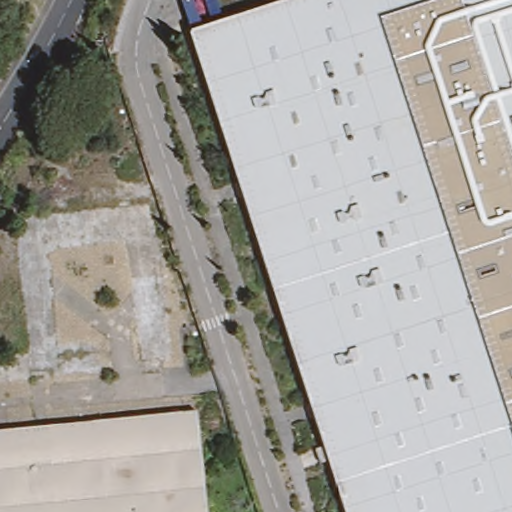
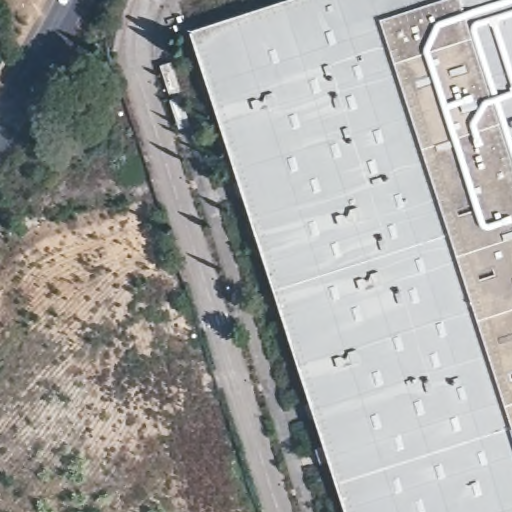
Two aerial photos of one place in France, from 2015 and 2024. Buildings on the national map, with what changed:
unchanged [(195,25),(229,15),(274,0),(512,0),(512,512),(352,512),(245,181),(195,25)]
demolished [(3,37),(0,39),(0,33),(3,37)]
demolished [(203,412),(205,435),(212,512),(0,512),(0,433),(203,412)]

